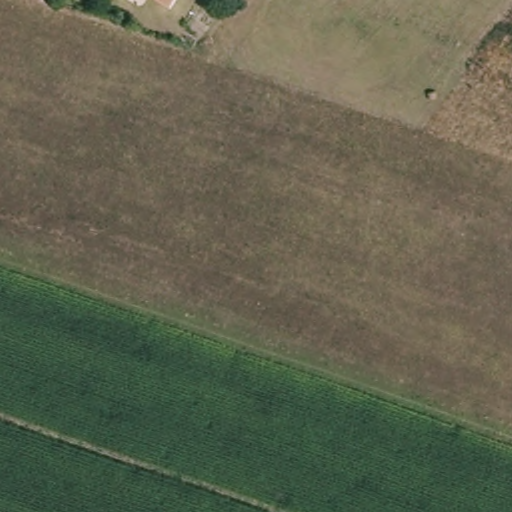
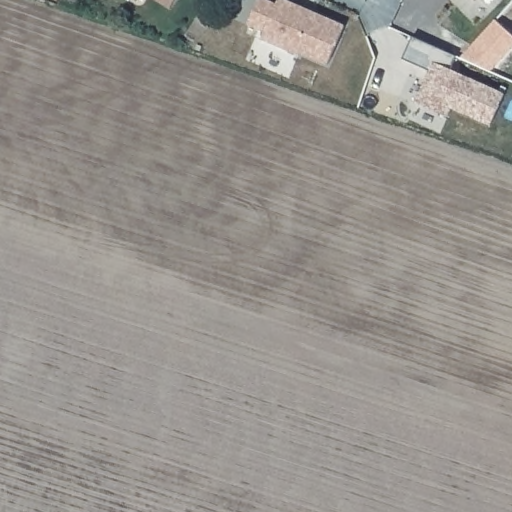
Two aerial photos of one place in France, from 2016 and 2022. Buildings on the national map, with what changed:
unchanged [(144,1),(145,0),(175,0),(165,15),(144,1)]
new [(250,24),(260,0),(272,0),(279,2),(280,0),(288,0),(344,25),(328,64),(300,53),(299,56),(262,39),(265,31),(250,24)]
new [(491,125),(453,110),(449,117),(416,104),(431,70),(404,59),(413,37),(455,56),(450,69),(504,93),(491,125)]

